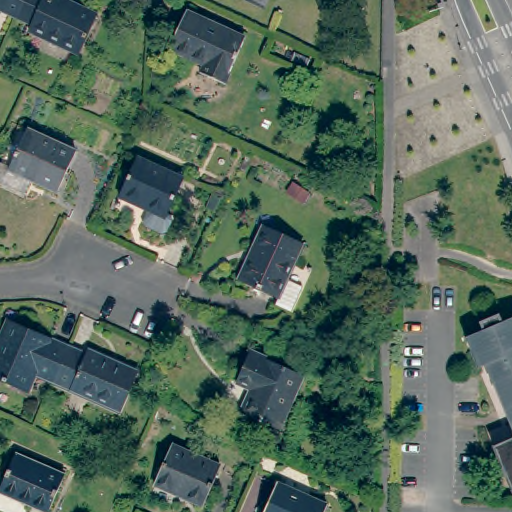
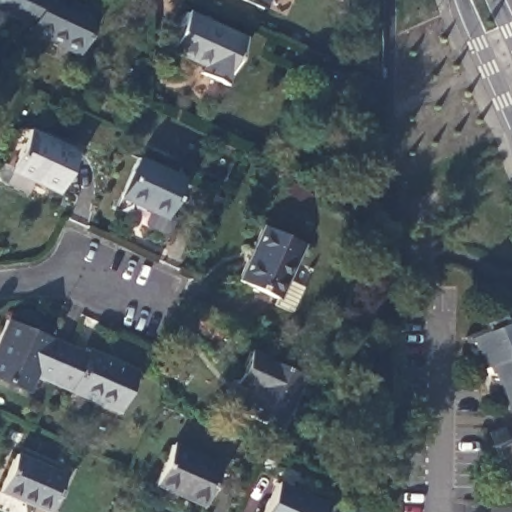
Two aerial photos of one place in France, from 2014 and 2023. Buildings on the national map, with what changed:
unchanged [(24,24),(0,13),(0,0),(34,0),(24,24)]
unchanged [(101,21),(84,59),(34,36),(37,30),(24,24),(34,0),(56,0),(101,21)]
unchanged [(242,0),(266,0),(262,9),(242,0)]
unchanged [(246,39),(224,86),(201,75),(205,66),(169,50),(186,12),(246,39)]
unchanged [(9,186),(4,182),(2,178),(1,173),(6,163),(15,167),(33,130),(82,152),(63,193),(36,180),(29,195),(9,186)]
unchanged [(114,207),(132,168),(178,189),(160,228),(114,207)]
unchanged [(263,226),(303,244),(278,299),(238,281),(263,226)]
unchanged [(500,322),(512,318),(512,428),(505,410),(493,384),(492,384),(489,376),(484,365),(479,367),(472,350),(471,348),(466,337),(472,335),(483,330),(480,323),(498,315),(500,322)]
unchanged [(35,380),(27,396),(0,385),(0,346),(9,326),(68,352),(53,388),(35,380)]
unchanged [(68,352),(86,360),(88,355),(138,377),(120,418),(53,388),(68,352)]
unchanged [(279,430),(240,413),(251,389),(236,382),(249,352),(303,376),(279,430)]
unchanged [(493,446),(507,440),(512,438),(512,491),(502,468),(493,446)]
unchanged [(171,450),(221,472),(203,512),(154,489),(171,450)]
unchanged [(65,486),(53,512),(23,512),(0,502),(0,499),(15,464),(65,486)]
unchanged [(328,511),(327,512),(266,512),(277,488),(328,511)]

